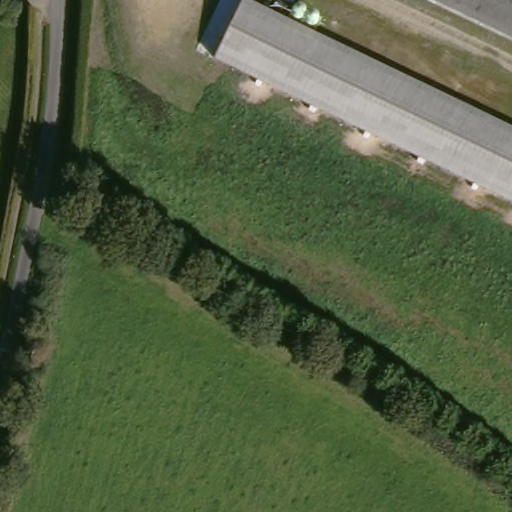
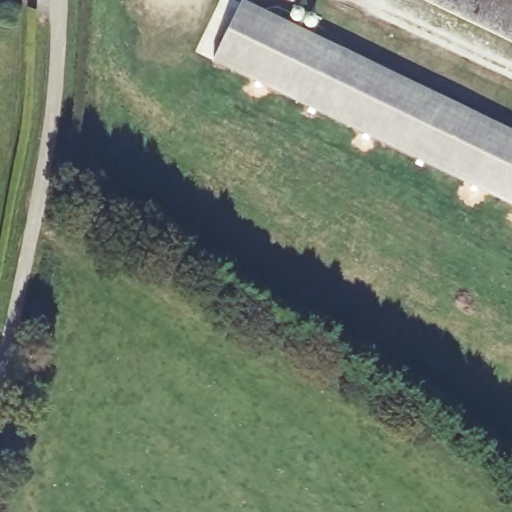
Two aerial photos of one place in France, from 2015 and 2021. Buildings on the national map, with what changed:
unchanged [(213,61),(242,0),(512,131),(512,206),(213,61)]
unchanged [(512,0),(512,48),(412,0),(512,0)]

